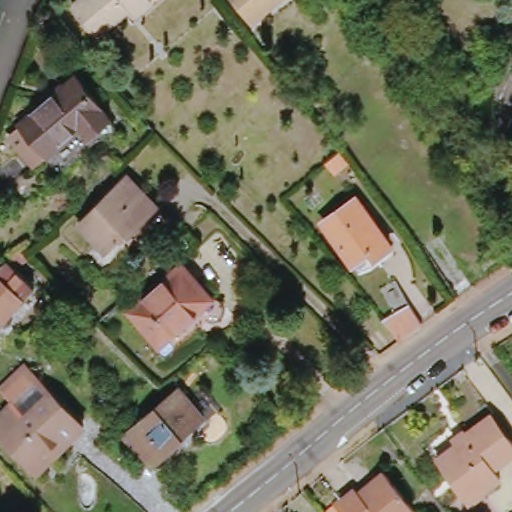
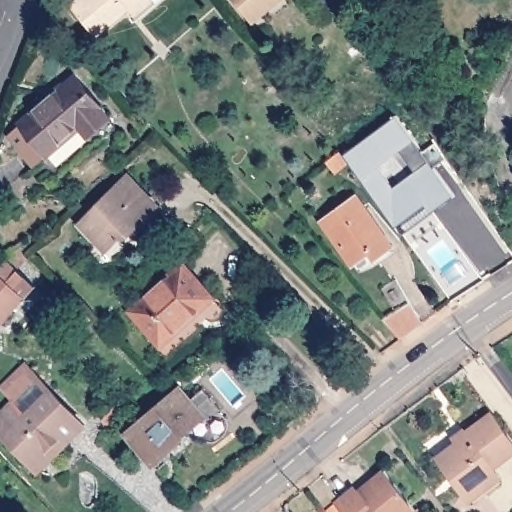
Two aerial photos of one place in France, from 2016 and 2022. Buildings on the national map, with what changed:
unchanged [(128,1),(96,30),(73,4),(78,0),(146,0),(135,9),(128,1)]
unchanged [(233,0),(280,0),(252,24),(233,0)]
unchanged [(90,136),(82,127),(48,155),(22,124),(76,75),(111,117),(90,136)]
new [(403,234),(345,155),(397,116),(455,196),(403,234)]
unchanged [(348,162),(335,174),(327,163),(340,151),(348,162)]
unchanged [(157,206),(130,234),(127,231),(107,250),(82,222),(128,176),(157,206)]
unchanged [(374,260),(367,250),(352,261),(323,222),(357,199),(392,247),(374,260)]
unchanged [(5,327),(0,323),(0,272),(14,260),(25,250),(27,251),(34,258),(23,268),(42,287),(5,327)]
unchanged [(162,345),(131,311),(183,263),(214,298),(162,345)]
unchanged [(403,312),(387,290),(400,280),(413,305),(403,312)]
unchanged [(428,323),(406,340),(392,323),(415,305),(428,323)]
unchanged [(85,430),(40,473),(0,432),(0,414),(13,401),(37,378),(50,390),(86,426),(85,430)]
unchanged [(190,383),(215,410),(191,431),(193,433),(163,461),(136,430),(190,383)]
unchanged [(496,413),(512,435),(512,457),(498,467),(505,477),(488,490),(483,483),(470,493),(442,457),(473,433),(471,431),(496,413)]
unchanged [(322,510),(337,498),(355,482),(362,490),(373,481),(370,477),(382,466),(419,512),(323,512),(322,510)]

